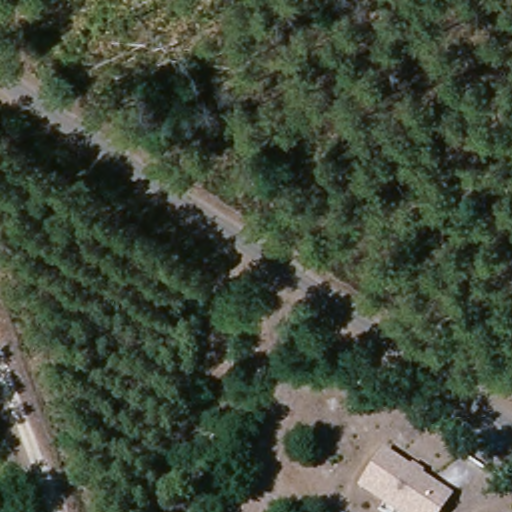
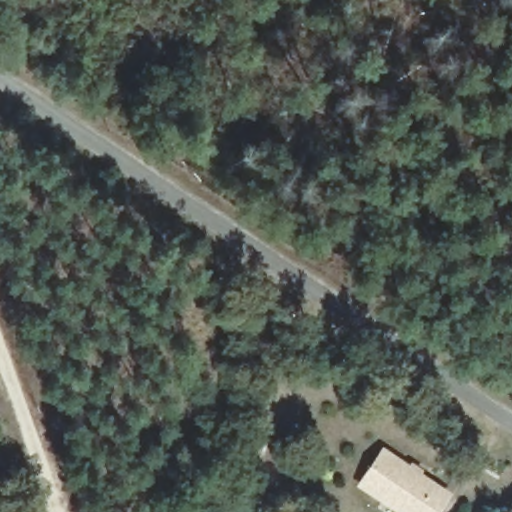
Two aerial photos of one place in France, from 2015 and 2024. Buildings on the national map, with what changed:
unchanged [(454,491),(440,512),(396,512),(356,487),(381,445),(454,491)]

